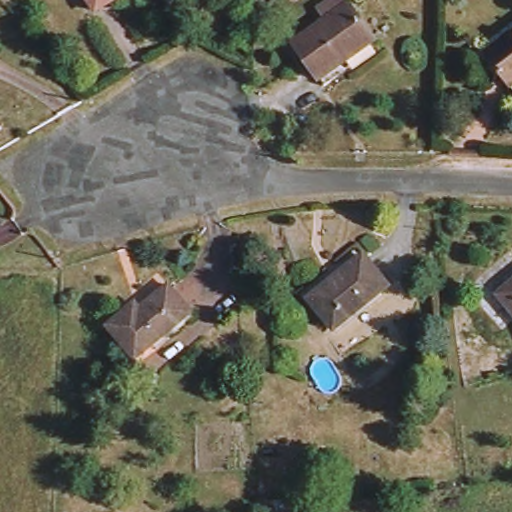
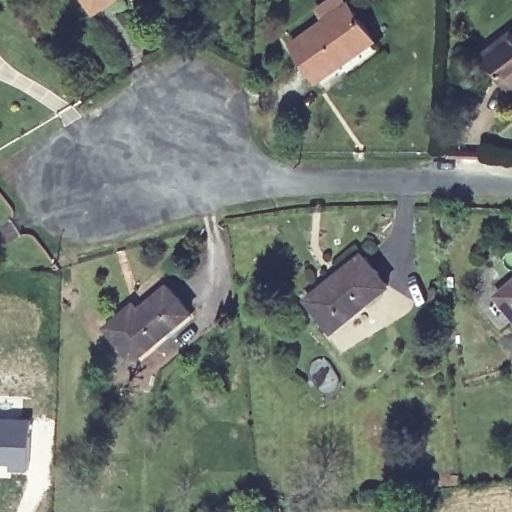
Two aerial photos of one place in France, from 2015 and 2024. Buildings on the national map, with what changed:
unchanged [(108,6),(104,0),(117,0),(108,6)]
unchanged [(351,60),(347,55),(327,71),(302,38),(354,0),(359,0),(383,35),(351,60)]
unchanged [(512,44),(512,67),(502,51),(512,44)]
unchanged [(341,325),(314,294),(336,275),(340,280),(377,248),(401,275),(341,325)]
unchanged [(147,355),(120,321),(149,298),(152,303),(179,281),(205,311),(147,355)]
unchanged [(512,288),(512,299),(507,293),(512,288)]
new [(0,460),(0,414),(32,415),(32,467),(14,468),(13,460),(0,460)]

